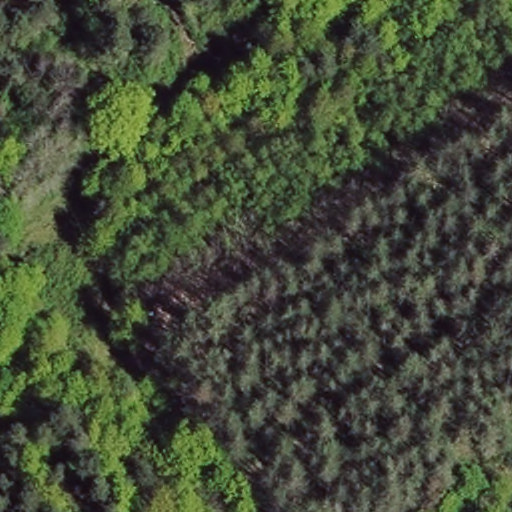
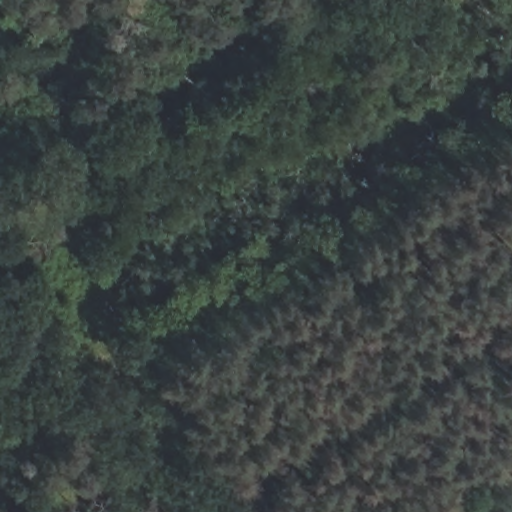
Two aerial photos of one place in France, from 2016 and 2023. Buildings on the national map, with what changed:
[]

